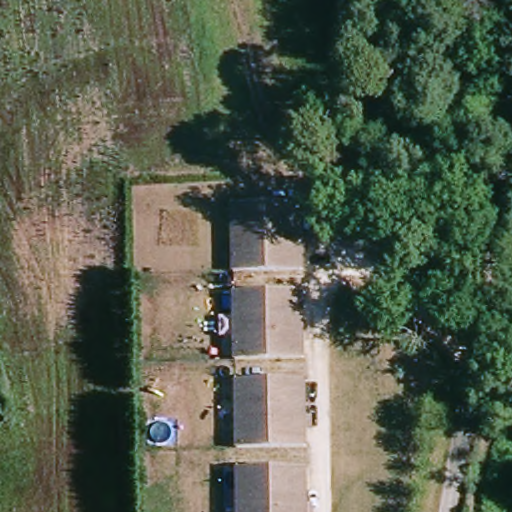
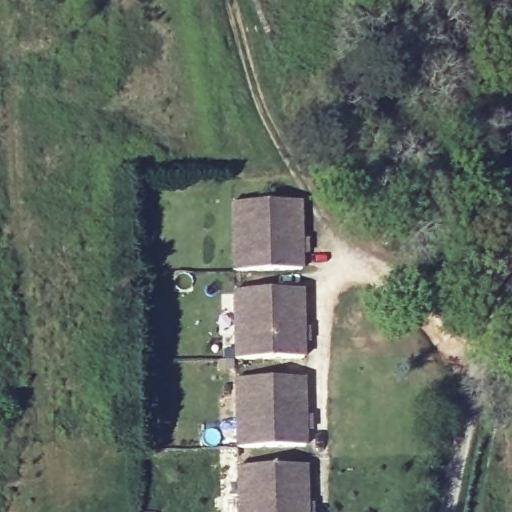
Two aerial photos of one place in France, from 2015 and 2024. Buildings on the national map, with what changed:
unchanged [(304,265),(237,265),(234,202),(290,203),(302,203),(302,229),(304,265)]
unchanged [(236,356),(234,290),(300,287),(303,346),(304,355),(282,355),(236,356)]
unchanged [(241,445),(239,379),(304,377),(305,445),(241,445)]
unchanged [(308,512),(243,512),(242,465),(306,463),(308,512)]

